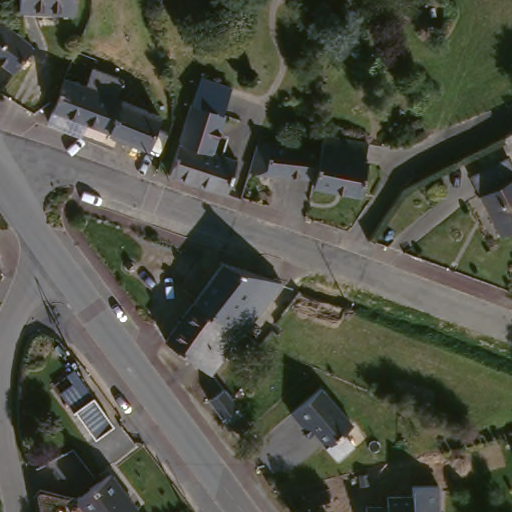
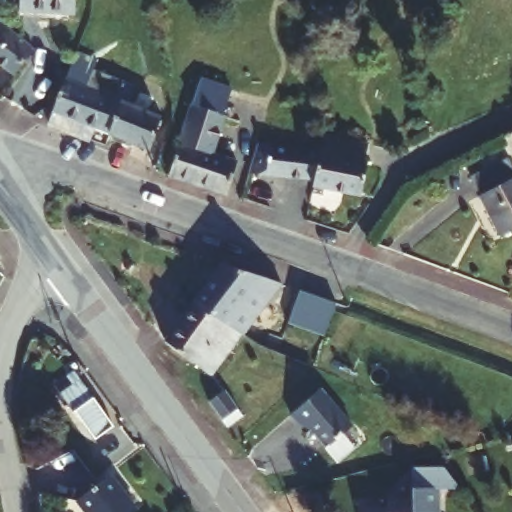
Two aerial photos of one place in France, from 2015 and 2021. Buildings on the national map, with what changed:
unchanged [(65,18),(22,19),(22,0),(71,0),(73,18),(65,18)]
unchanged [(14,75),(0,67),(0,23),(16,34),(33,46),(14,75)]
unchanged [(80,66),(87,68),(122,80),(117,100),(119,101),(107,135),(52,117),(68,79),(74,82),(80,66)]
unchanged [(119,101),(158,115),(149,148),(107,135),(119,101)]
unchanged [(210,158),(234,165),(222,197),(171,177),(183,128),(189,104),(223,113),(210,158)]
unchanged [(323,137),(378,146),(371,166),(319,158),(321,151),(323,137)]
unchanged [(319,158),(371,166),(361,200),(308,187),(305,181),(242,185),(250,149),(321,151),(319,158)]
unchanged [(508,161),(512,170),(512,230),(501,235),(498,236),(496,232),(469,177),(508,161)]
unchanged [(221,266),(273,286),(242,330),(196,302),(221,266)]
new [(299,289),(335,302),(324,335),(288,322),(299,289)]
unchanged [(242,330),(239,334),(210,374),(167,342),(176,329),(196,302),(242,330)]
unchanged [(242,373),(262,398),(246,412),(225,387),(242,373)]
unchanged [(115,436),(101,446),(76,413),(74,415),(56,391),(71,381),(88,404),(91,402),(115,436)]
unchanged [(314,386),(342,418),(337,423),(347,436),(331,450),(314,433),(301,443),(290,430),(297,424),(285,409),(314,386)]
new [(224,390),(242,415),(227,427),(208,401),(224,390)]
unchanged [(111,477),(131,512),(83,512),(75,497),(111,477)]
unchanged [(382,503),(405,503),(405,495),(434,495),(435,512),(382,512),(382,503)]

